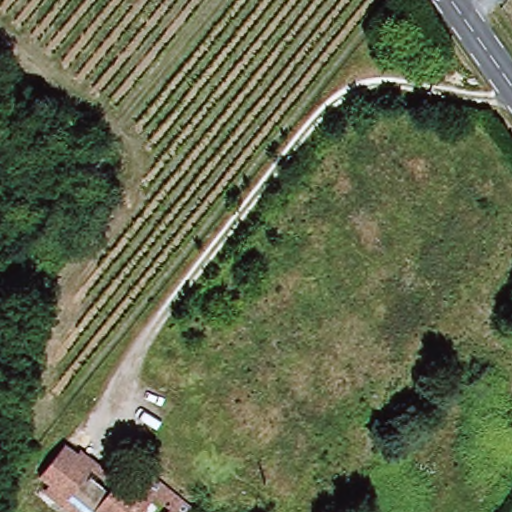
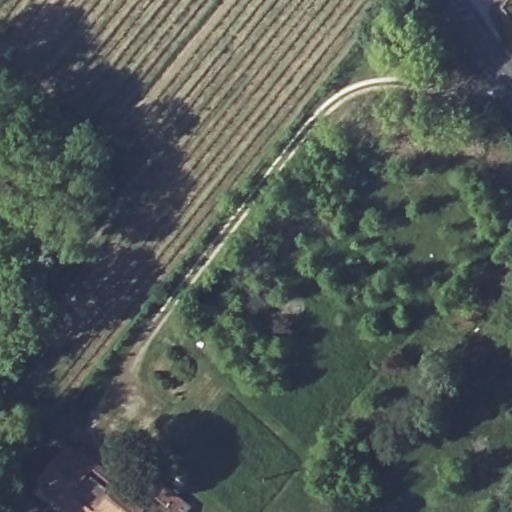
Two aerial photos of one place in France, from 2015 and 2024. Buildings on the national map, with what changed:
unchanged [(60,431),(91,456),(80,470),(65,489),(34,464),(60,431)]
unchanged [(80,470),(104,490),(111,481),(140,505),(134,512),(94,512),(65,489),(80,470)]
unchanged [(163,512),(169,504),(148,486),(157,474),(179,493),(193,503),(185,512),(163,512)]

